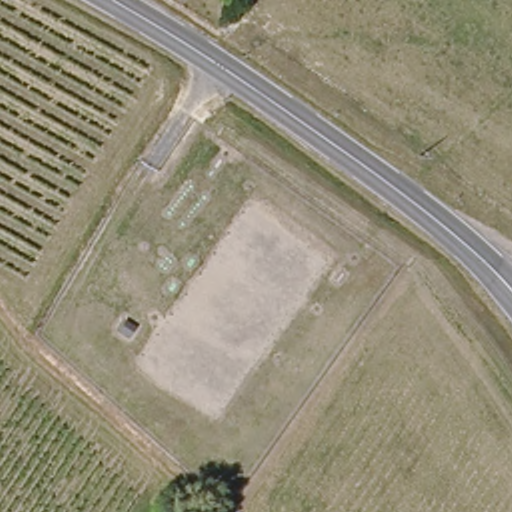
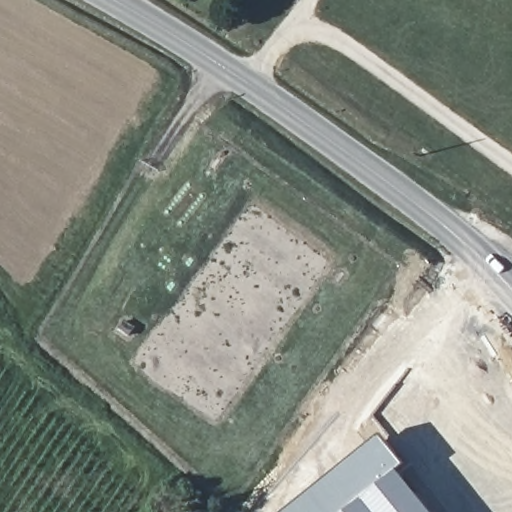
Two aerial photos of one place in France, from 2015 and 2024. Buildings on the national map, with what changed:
new [(381,435),(405,464),(398,470),(433,512),(285,512),(381,435)]

